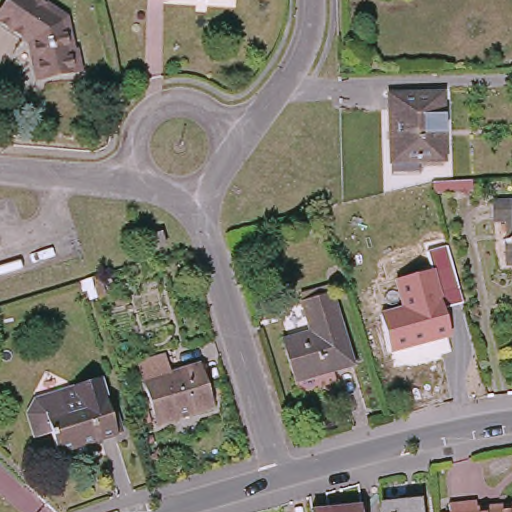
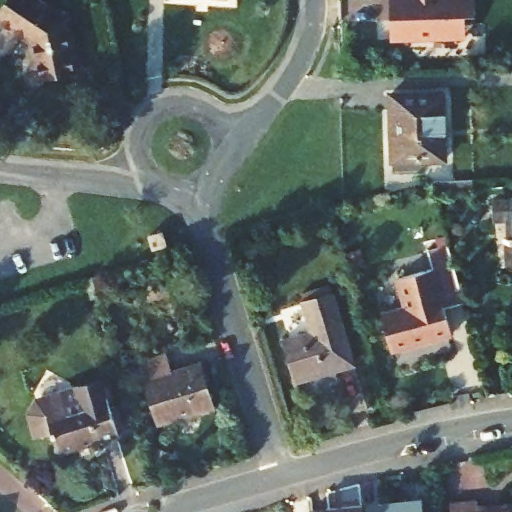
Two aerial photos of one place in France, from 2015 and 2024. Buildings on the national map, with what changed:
unchanged [(81,64),(44,70),(37,36),(2,12),(10,0),(56,0),(72,11),(81,64)]
new [(464,15),(465,39),(390,43),(389,0),(474,0),(474,14),(464,15)]
unchanged [(441,93),(443,158),(390,159),(388,95),(441,93)]
unchanged [(505,262),(503,219),(493,219),(492,203),(512,202),(512,261),(505,262)]
unchanged [(395,281),(433,269),(428,252),(447,248),(462,303),(438,309),(431,285),(430,285),(410,292),(412,300),(401,304),(395,281)]
unchanged [(412,300),(410,292),(430,285),(431,285),(447,337),(426,344),(425,339),(387,349),(376,312),(390,308),(412,300)]
unchanged [(330,293),(350,363),(292,381),(279,336),(307,327),(299,302),(330,293)]
unchanged [(163,349),(169,369),(199,361),(211,402),(156,418),(137,357),(163,349)]
unchanged [(94,441),(56,452),(50,432),(35,436),(28,412),(34,399),(62,392),(98,380),(102,396),(115,434),(94,441)]
unchanged [(376,497),(415,494),(416,512),(377,512),(376,497)]
unchanged [(448,499),(476,497),(477,512),(491,510),(491,512),(428,512),(428,510),(449,509),(448,499)]
unchanged [(357,499),(358,512),(308,512),(308,504),(357,499)]
unchanged [(500,504),(512,503),(512,512),(491,512),(491,510),(501,509),(500,504)]

